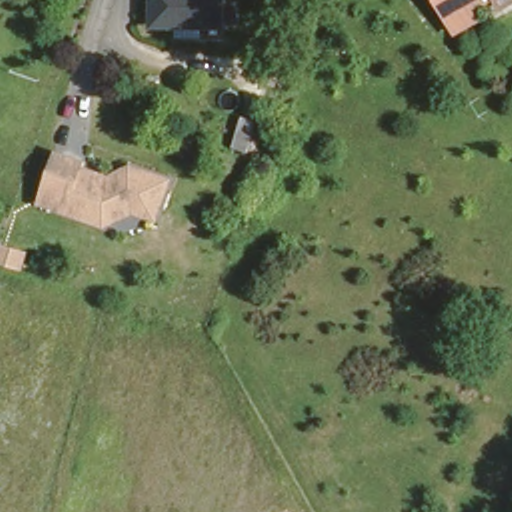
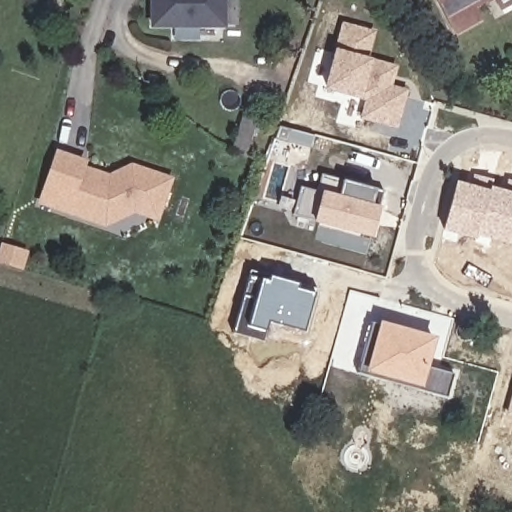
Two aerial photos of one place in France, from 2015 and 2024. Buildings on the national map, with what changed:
unchanged [(153,23),(154,0),(224,0),(222,26),(153,23)]
unchanged [(475,9),(452,20),(442,0),(470,0),(475,9)]
new [(361,120),(363,102),(327,92),(343,26),(377,33),(370,62),(398,68),(394,89),(410,93),(401,130),(361,120)]
unchanged [(41,188),(52,156),(77,165),(75,171),(102,181),(124,169),(164,183),(151,222),(128,214),(99,228),(60,214),(35,206),(41,188)]
new [(477,236),(476,239),(443,230),(456,181),(471,185),(473,175),(492,180),(492,186),(505,190),(508,180),(512,181),(512,245),(477,236)]
new [(381,191),(376,209),(385,211),(376,244),(296,220),(304,188),(321,193),(324,176),(381,191)]
new [(303,331),(268,321),(266,330),(263,341),(233,333),(252,270),(270,275),(297,283),(317,288),(313,293),(303,331)]
new [(437,336),(429,367),(453,374),(447,395),(357,372),(371,322),(380,324),(380,321),(437,336)]
new [(509,414),(512,399),(512,415),(509,414)]

